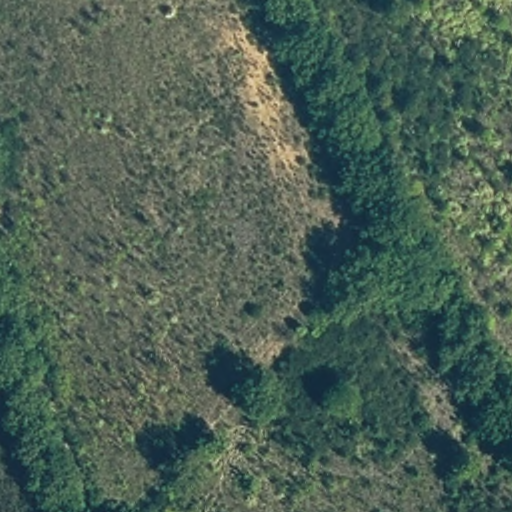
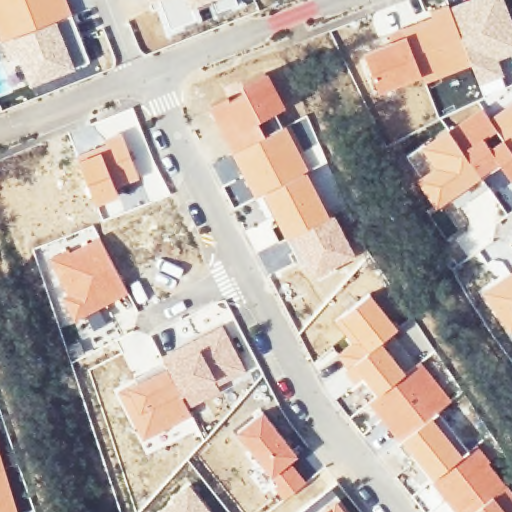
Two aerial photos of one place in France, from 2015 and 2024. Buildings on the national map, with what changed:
new [(7,62),(0,45),(0,0),(67,0),(72,14),(89,61),(75,67),(31,86),(20,57),(7,62)]
new [(215,15),(209,1),(196,6),(201,17),(167,31),(158,7),(152,11),(148,0),(238,0),(240,4),(215,15)]
new [(504,0),(512,20),(512,54),(498,61),(508,89),(484,98),(478,85),(471,65),(448,4),(460,0),(504,0)]
new [(471,65),(423,84),(420,77),(403,35),(387,39),(386,36),(378,40),(370,17),(395,5),(403,26),(448,4),(471,65)]
new [(387,39),(403,35),(420,77),(377,94),(358,52),(387,39)]
new [(267,70),(286,106),(260,121),(267,133),(230,155),(207,108),(267,70)]
new [(500,167),(483,177),(445,127),(440,118),(478,100),(489,116),(512,100),(512,183),(510,184),(500,167)]
new [(108,218),(101,202),(97,205),(76,155),(67,132),(93,122),(132,106),(139,124),(170,194),(108,218)]
new [(267,133),(287,123),(306,114),(319,141),(327,161),(308,170),(259,196),(233,207),(212,165),(230,155),(267,133)]
new [(445,127),(483,177),(449,201),(433,211),(412,179),(415,176),(403,156),(445,127)]
new [(259,196),(308,170),(330,213),(334,211),(357,254),(317,278),(303,260),(299,262),(268,275),(255,252),(245,230),(268,217),(278,239),(285,237),(259,196)]
new [(477,292),(496,280),(485,265),(490,260),(483,249),(466,260),(451,240),(467,225),(449,201),(483,177),(509,214),(497,223),(494,237),(495,240),(504,236),(512,247),(512,342),(477,292)]
new [(93,224),(128,292),(72,322),(58,296),(61,295),(43,256),(42,246),(93,224)]
new [(344,367),(335,356),(350,342),(332,321),(368,292),(400,328),(383,341),(408,371),(373,397),(361,383),(335,402),(322,383),(344,367)]
new [(220,323),(247,372),(220,386),(222,391),(189,408),(164,363),(160,355),(220,323)]
new [(435,351),(422,362),(402,333),(415,323),(435,351)]
new [(141,328),(160,355),(164,363),(135,378),(117,339),(141,328)]
new [(408,371),(422,362),(452,400),(433,416),(397,443),(365,404),(373,397),(408,371)]
new [(147,455),(140,443),(113,390),(135,378),(164,363),(189,408),(193,416),(199,430),(147,455)]
new [(260,410),(298,454),(290,461),(307,482),(282,502),(260,475),(262,472),(261,470),(263,467),(235,431),(260,410)]
new [(433,416),(465,455),(430,483),(428,485),(430,482),(397,443),(433,416)]
new [(430,483),(465,455),(477,445),(512,491),(512,512),(450,512),(439,499),(428,485),(430,483)]
new [(0,450),(4,463),(17,512),(0,512),(0,450)]
new [(335,498),(346,512),(317,512),(335,498)]
new [(439,499),(450,512),(426,512),(439,499)]

